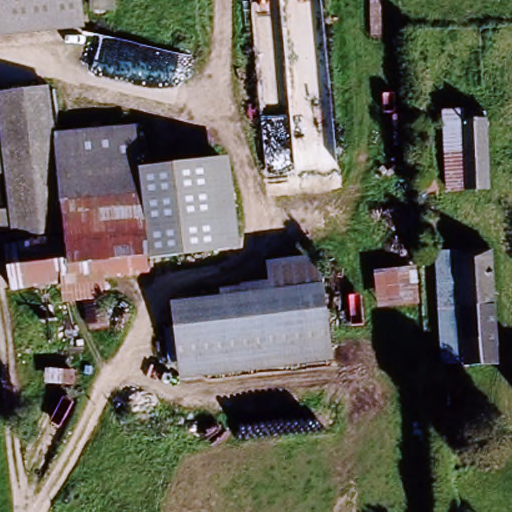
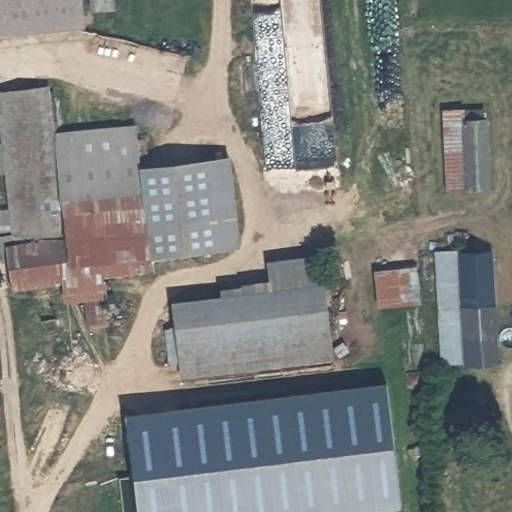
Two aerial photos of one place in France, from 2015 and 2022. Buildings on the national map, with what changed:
unchanged [(78,32),(0,36),(0,0),(75,0),(78,32)]
unchanged [(63,241),(137,233),(143,274),(15,287),(10,250),(0,158),(0,96),(43,90),(49,133),(63,241)]
unchanged [(455,110),(481,109),(484,189),(461,191),(456,124),(455,110)]
unchanged [(461,191),(442,192),(438,126),(456,124),(461,191)]
unchanged [(63,241),(49,133),(118,126),(130,125),(138,175),(136,175),(141,232),(137,233),(63,241)]
unchanged [(228,158),(238,246),(148,257),(144,223),(138,166),(140,166),(228,158)]
demolished [(411,185),(428,185),(430,236),(414,237),(411,185)]
unchanged [(484,252),(492,357),(460,360),(452,253),(484,252)]
unchanged [(460,360),(438,361),(429,254),(452,253),(460,360)]
unchanged [(329,362),(176,381),(166,301),(264,282),(261,262),(318,256),(329,362)]
unchanged [(417,306),(372,311),(370,273),(415,269),(417,306)]
new [(386,383),(399,508),(363,512),(135,512),(124,412),(150,409),(386,383)]

